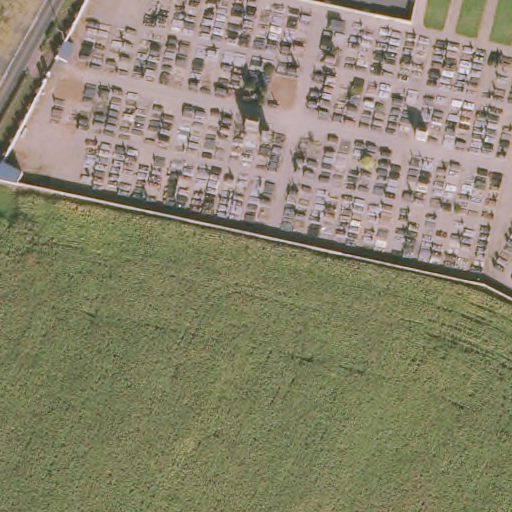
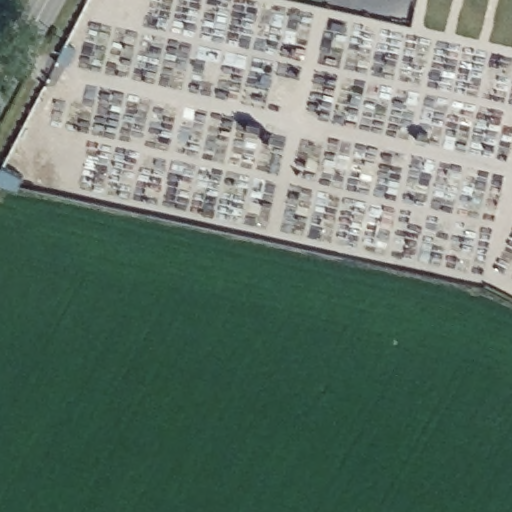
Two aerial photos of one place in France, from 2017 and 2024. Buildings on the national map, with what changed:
unchanged [(67,41),(79,47),(70,64),(58,58),(67,41)]
unchanged [(0,168),(3,162),(25,173),(19,184),(0,180),(0,168)]

